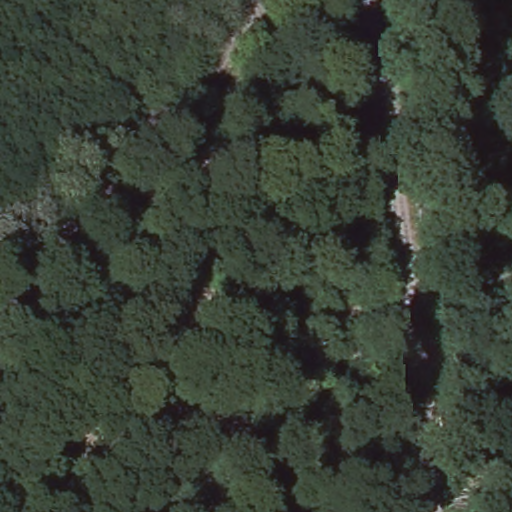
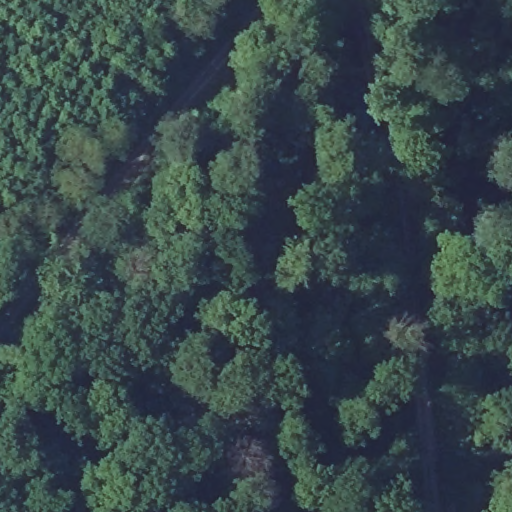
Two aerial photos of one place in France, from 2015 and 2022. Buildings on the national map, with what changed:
unchanged [(325,236),(347,263),(324,281),(301,253),(325,236)]

